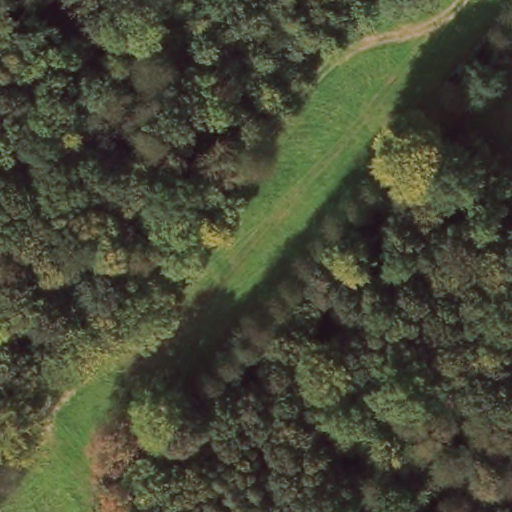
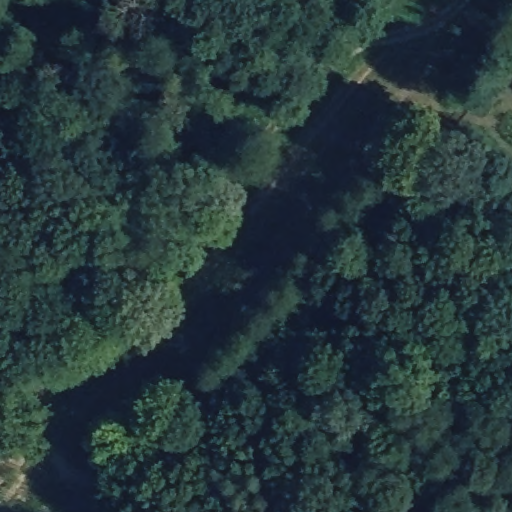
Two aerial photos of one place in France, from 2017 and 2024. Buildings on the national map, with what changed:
unchanged [(157,358),(144,375),(127,362),(141,346),(157,358)]

